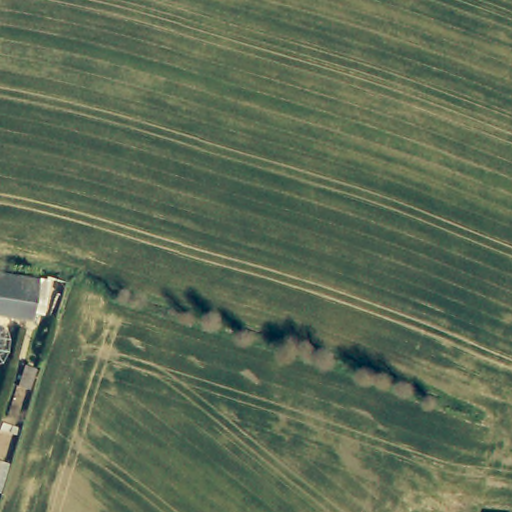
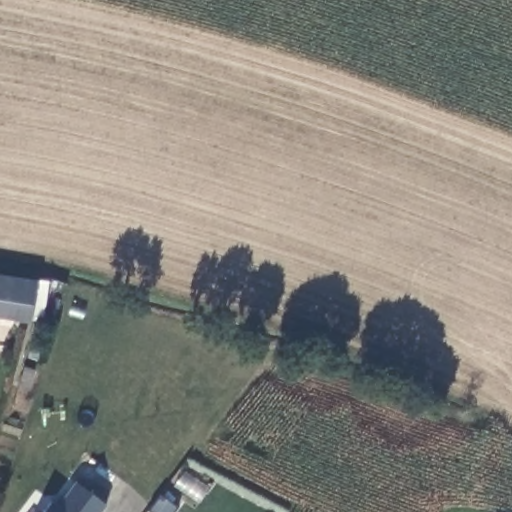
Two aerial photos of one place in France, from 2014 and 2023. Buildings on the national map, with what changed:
unchanged [(0,321),(0,282),(37,290),(29,326),(0,321)]
new [(51,502),(57,506),(75,482),(106,505),(100,512),(43,512),(51,502)]

